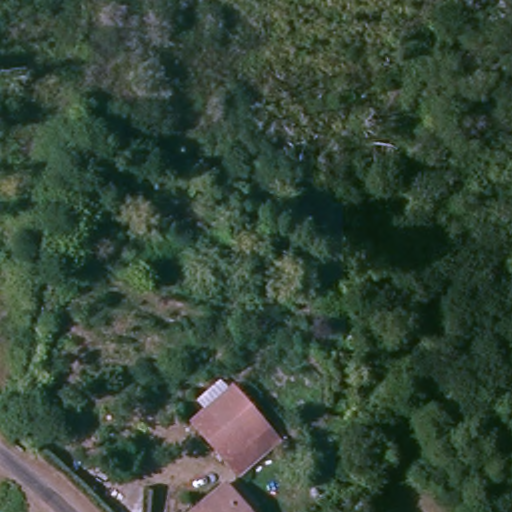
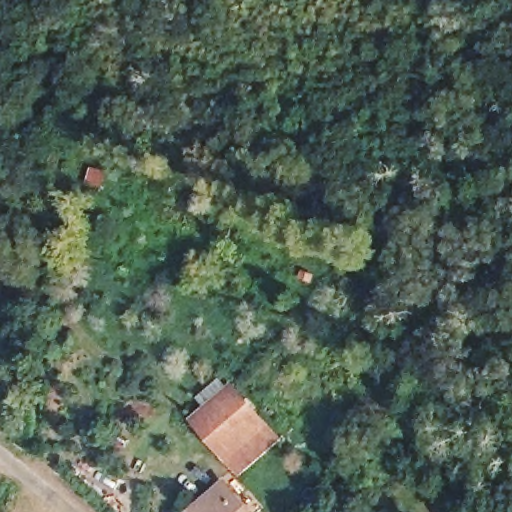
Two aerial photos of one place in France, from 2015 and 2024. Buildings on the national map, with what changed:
unchanged [(228,465),(191,431),(232,387),(269,421),(228,465)]
unchanged [(269,421),(284,435),(243,479),(228,465),(269,421)]
unchanged [(252,512),(198,512),(227,486),(252,512)]

